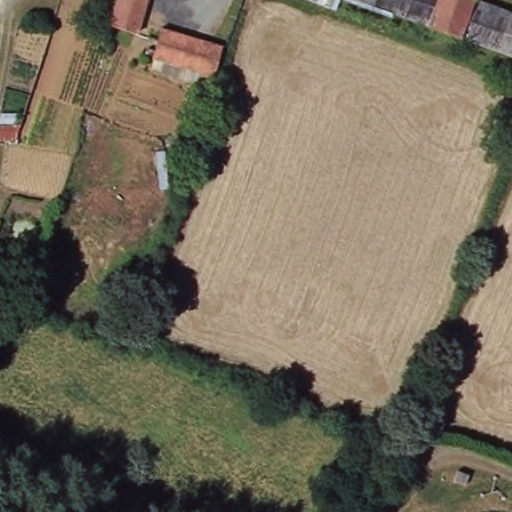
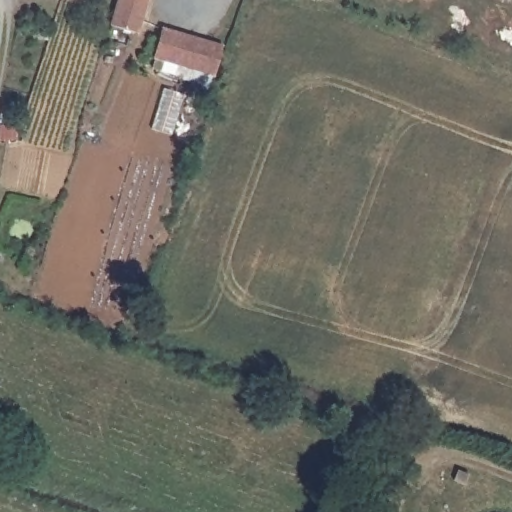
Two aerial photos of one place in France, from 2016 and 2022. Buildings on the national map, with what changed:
unchanged [(137,34),(110,26),(118,0),(147,0),(137,34)]
demolished [(512,58),(355,0),(475,0),(485,4),(512,13),(512,58)]
unchanged [(215,76),(153,59),(161,27),(222,47),(215,76)]
unchanged [(16,140),(0,141),(0,125),(13,125),(15,119),(22,121),(16,140)]
unchanged [(465,486),(453,481),(458,470),(469,475),(465,486)]

